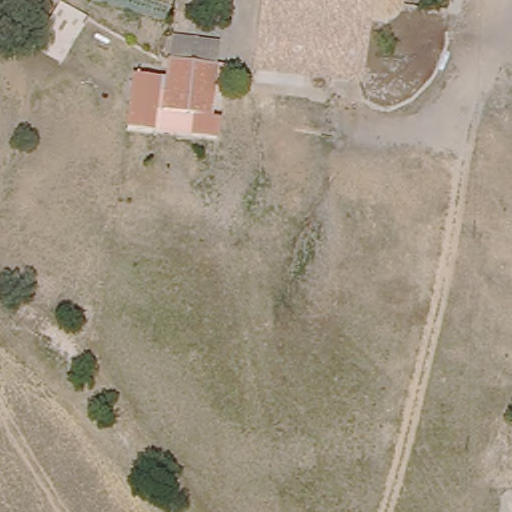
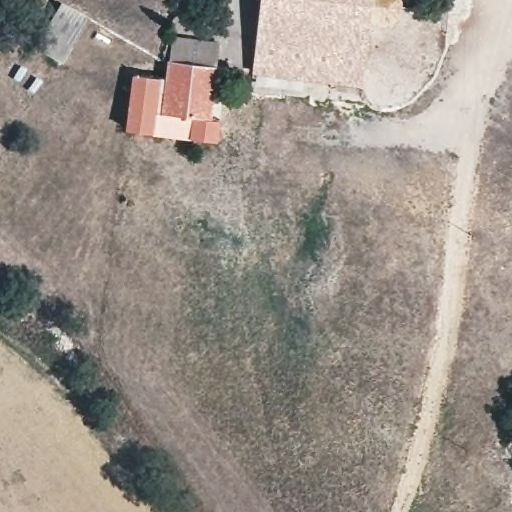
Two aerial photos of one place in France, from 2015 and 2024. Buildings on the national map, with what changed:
unchanged [(398,21),(386,29),(369,28),(363,80),(253,67),(260,0),(396,0),(400,5),(398,21)]
unchanged [(95,30),(65,75),(35,55),(65,10),(95,30)]
unchanged [(168,60),(169,38),(216,42),(215,64),(168,60)]
unchanged [(210,119),(216,119),(214,140),(128,133),(132,79),(166,82),(168,60),(215,64),(210,119)]

